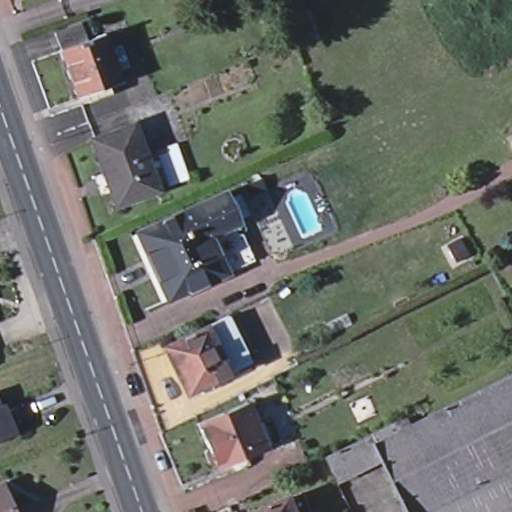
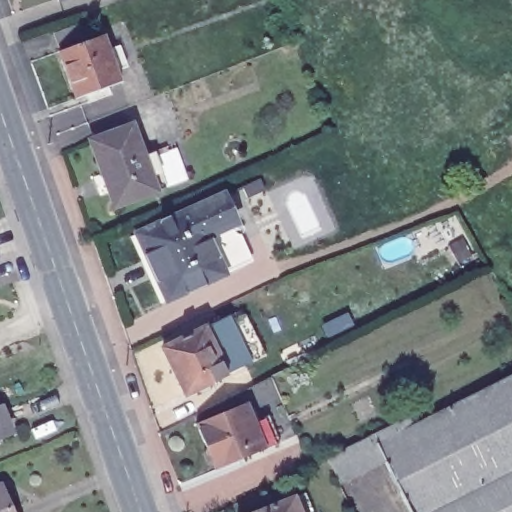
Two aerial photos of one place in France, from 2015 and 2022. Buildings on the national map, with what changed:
unchanged [(52,34),(78,24),(84,43),(102,36),(120,84),(75,101),(57,52),(58,51),(52,34)]
unchanged [(131,121),(157,187),(115,203),(90,136),(131,121)]
unchanged [(221,191),(236,223),(208,235),(224,271),(166,297),(136,229),(221,191)]
unchanged [(193,391),(170,343),(212,323),(224,317),(240,351),(229,357),(235,370),(193,391)]
unchanged [(380,457),(371,462),(337,479),(327,458),(360,441),(407,418),(411,426),(512,376),(512,512),(407,512),(380,457)]
unchanged [(245,403),(264,449),(213,470),(212,466),(205,466),(201,455),(204,449),(194,424),(245,403)]
unchanged [(12,432),(0,437),(0,408),(1,407),(6,420),(12,432)]
unchanged [(12,512),(0,512),(0,485),(12,512)]
unchanged [(291,494),(299,512),(246,512),(291,494)]

